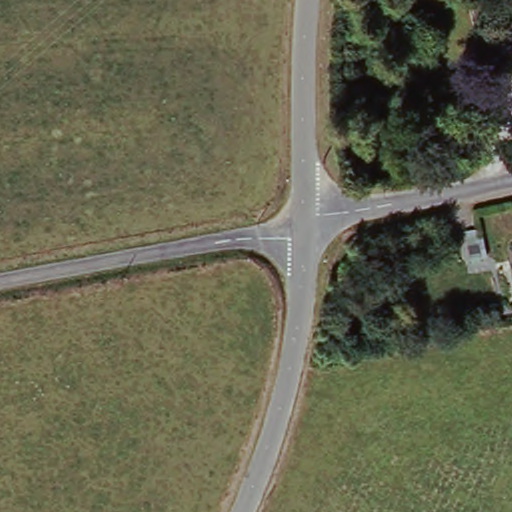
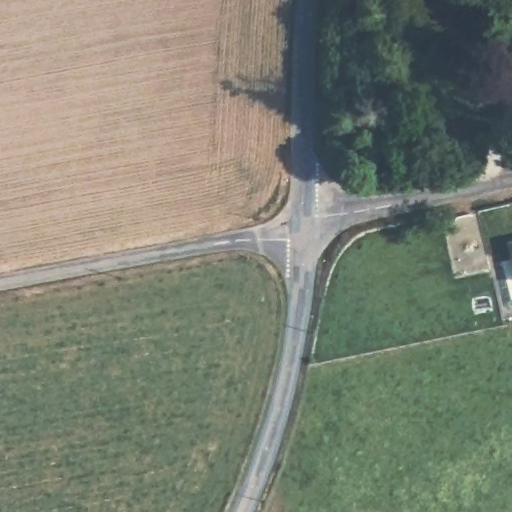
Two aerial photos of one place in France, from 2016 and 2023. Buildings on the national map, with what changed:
unchanged [(512,251),(510,241),(512,241),(512,251)]

